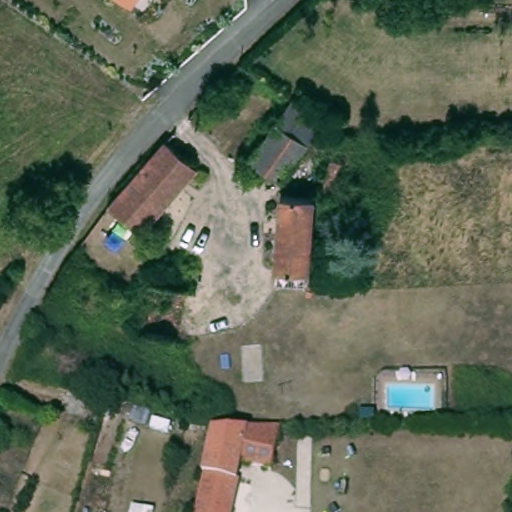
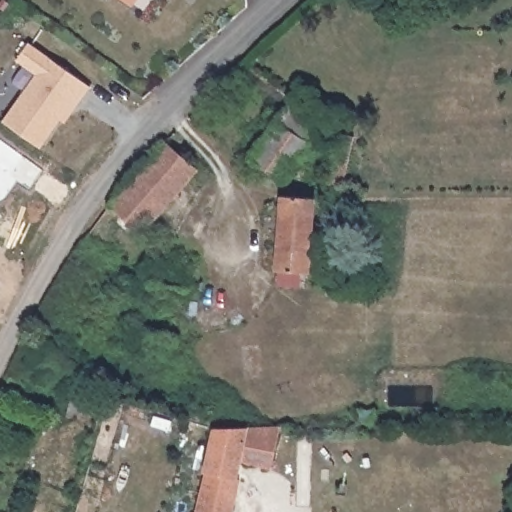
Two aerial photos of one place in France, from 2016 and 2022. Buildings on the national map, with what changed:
unchanged [(122,0),(136,0),(131,7),(122,0)]
new [(91,87),(64,123),(60,121),(40,149),(2,121),(34,75),(15,62),(28,42),(91,87)]
unchanged [(320,124),(319,127),(282,181),(253,162),(291,103),(299,109),(320,124)]
unchanged [(340,198),(321,194),(335,135),(338,134),(354,137),(340,198)]
unchanged [(114,200),(166,145),(196,171),(142,232),(110,206),(114,200)]
unchanged [(314,199),(309,273),(277,272),(282,197),(314,199)]
unchanged [(151,282),(186,290),(176,341),(141,333),(148,298),(151,282)]
unchanged [(270,467),(240,459),(235,476),(206,468),(216,426),(282,424),(270,467)]
unchanged [(206,468),(235,476),(240,477),(231,512),(193,512),(206,468)]

